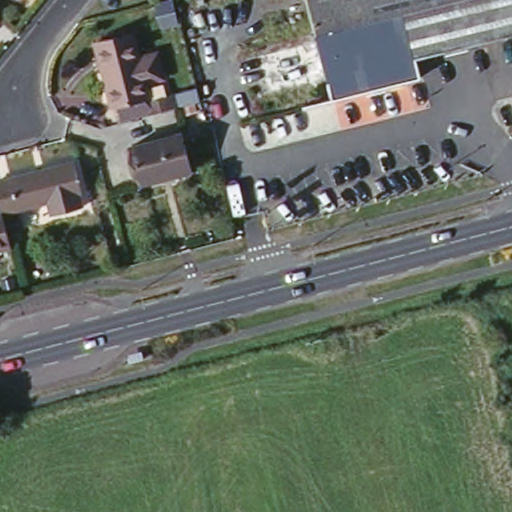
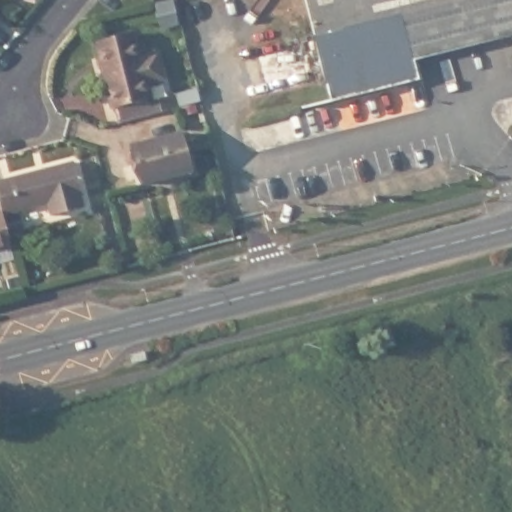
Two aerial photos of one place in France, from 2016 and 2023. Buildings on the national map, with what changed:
unchanged [(428,70),(339,91),(333,73),(275,88),(266,46),(325,30),(317,0),(512,0),(512,29),(424,55),(428,70)]
unchanged [(133,27),(146,78),(129,82),(127,75),(105,80),(94,37),(133,27)]
unchanged [(143,101),(180,91),(183,102),(175,104),(176,107),(146,115),(143,101)]
unchanged [(176,132),(185,170),(134,184),(125,145),(176,132)]
unchanged [(69,156),(77,188),(74,190),(78,202),(46,210),(43,196),(0,207),(0,174),(69,156)]
unchanged [(5,239),(0,240),(0,218),(5,239)]

